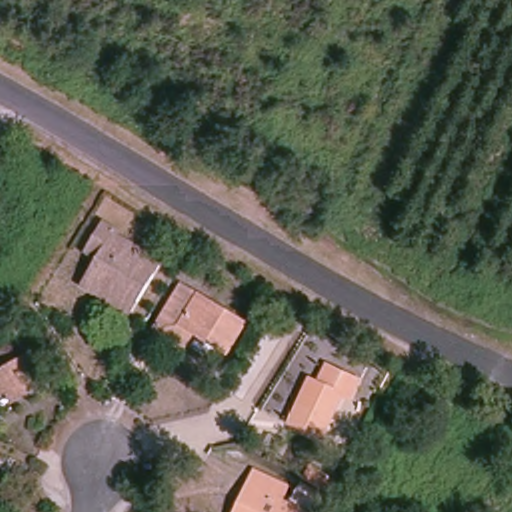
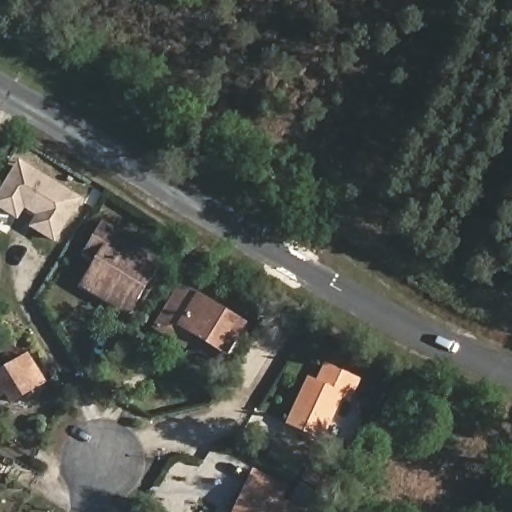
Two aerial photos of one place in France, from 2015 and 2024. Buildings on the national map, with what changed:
new [(29,170),(81,202),(55,242),(33,229),(40,217),(25,208),(17,220),(0,208),(0,198),(12,177),(20,165),(29,170)]
unchanged [(92,293),(80,287),(97,257),(87,251),(106,220),(120,227),(116,233),(165,262),(140,303),(132,317),(92,293)]
unchanged [(160,330),(169,316),(186,285),(246,321),(228,351),(200,334),(191,348),(160,330)]
unchanged [(32,371),(43,386),(11,403),(6,394),(0,397),(0,374),(14,367),(18,377),(32,371)]
unchanged [(350,397),(341,395),(317,440),(288,425),(313,380),(322,384),(331,368),(358,382),(350,397)]
unchanged [(255,472),(283,486),(276,497),(301,512),(234,512),(248,486),(255,472)]

